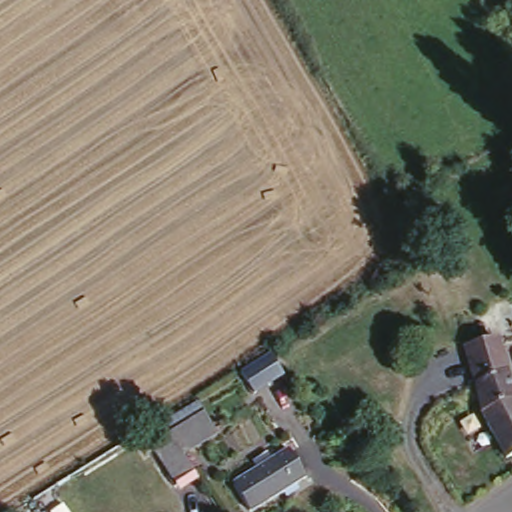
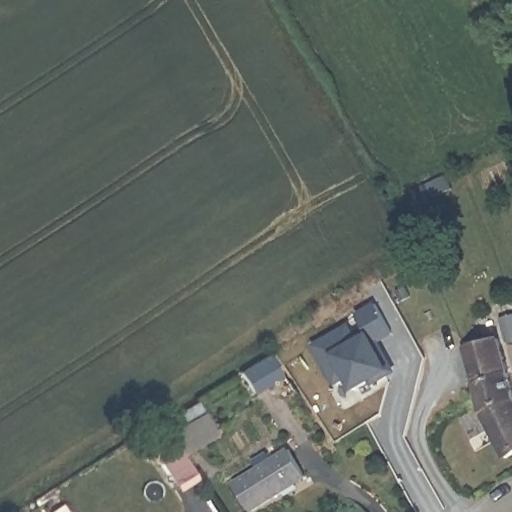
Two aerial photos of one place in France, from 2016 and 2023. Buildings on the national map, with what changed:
unchanged [(511,175),(506,160),(512,157),(512,174),(511,175)]
new [(362,337),(367,334),(356,314),(375,303),(392,336),(381,342),(397,372),(372,386),(371,382),(353,392),(346,381),(335,387),(311,345),(350,322),(362,337)]
unchanged [(476,413),(470,384),(460,348),(492,339),(509,401),(512,407),(512,452),(501,458),(476,413)]
new [(284,376),(255,394),(239,372),(271,353),(284,376)]
unchanged [(209,412),(222,433),(187,456),(174,434),(209,412)]
unchanged [(187,456),(200,475),(173,492),(145,447),(153,442),(159,435),(155,427),(166,421),(174,434),(187,456)]
unchanged [(344,443),(359,436),(364,444),(348,452),(344,443)]
unchanged [(233,485),(258,470),(253,462),(267,453),(272,462),(289,451),(305,477),(250,511),(233,485)]

